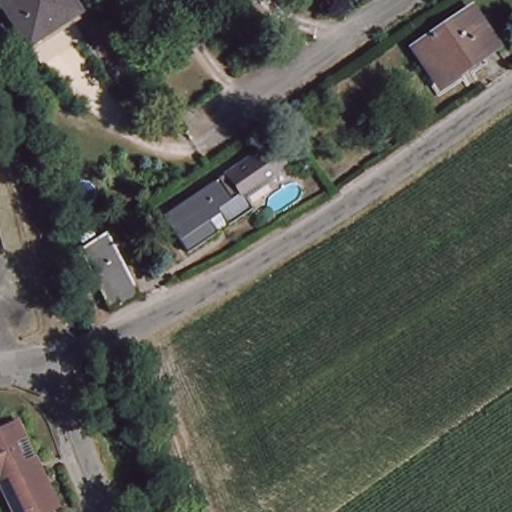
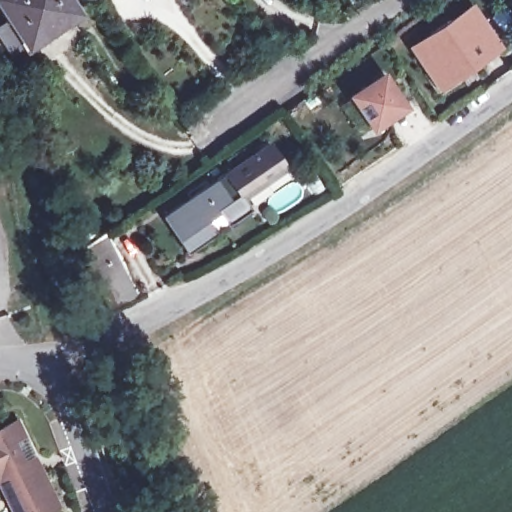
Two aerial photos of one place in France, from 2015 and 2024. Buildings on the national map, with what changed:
unchanged [(17,24),(2,0),(68,0),(65,2),(78,22),(35,51),(20,62),(1,34),(17,24)]
unchanged [(431,74),(412,46),(470,9),(495,48),(469,66),(440,86),(431,74)]
new [(383,75),(403,106),(373,127),(352,97),(383,75)]
unchanged [(212,238),(187,256),(165,222),(267,152),(281,173),(240,202),(248,214),(226,229),(218,217),(205,227),(212,238)]
unchanged [(110,237),(141,301),(115,314),(84,254),(110,237)]
unchanged [(0,484),(0,432),(18,423),(36,461),(46,482),(42,483),(55,512),(54,512),(14,512),(0,484)]

